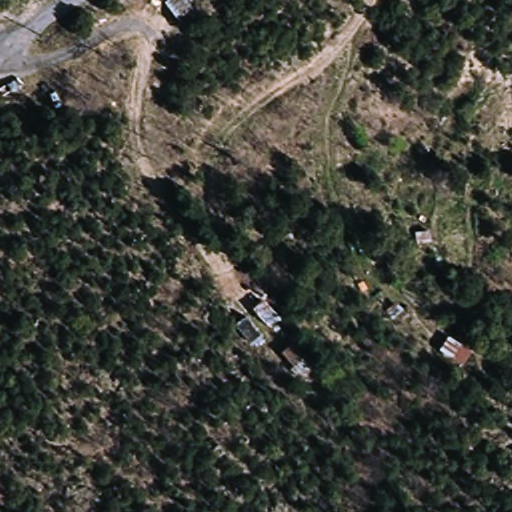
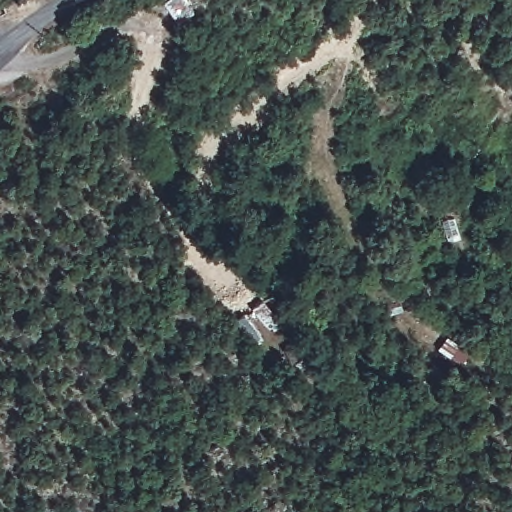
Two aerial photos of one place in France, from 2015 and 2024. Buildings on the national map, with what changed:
unchanged [(183,21),(167,0),(195,0),(202,10),(183,21)]
unchanged [(299,345),(313,358),(301,371),(286,357),(299,345)]

